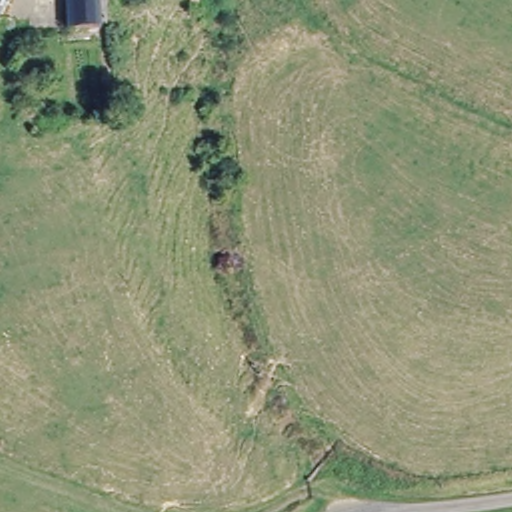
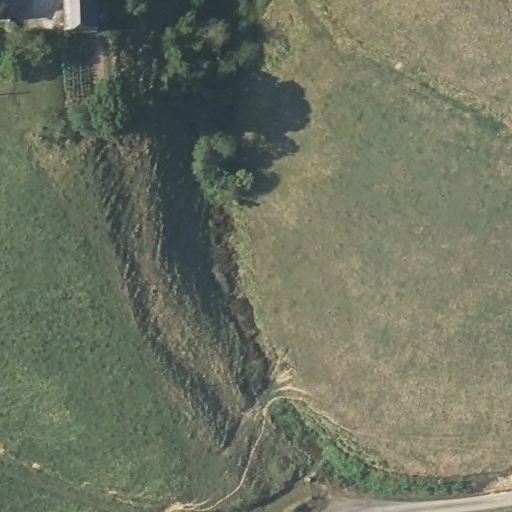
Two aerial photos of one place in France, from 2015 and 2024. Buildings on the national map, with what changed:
unchanged [(0,0),(7,0),(0,20),(0,0)]
unchanged [(95,0),(97,28),(59,30),(56,0),(95,0)]

